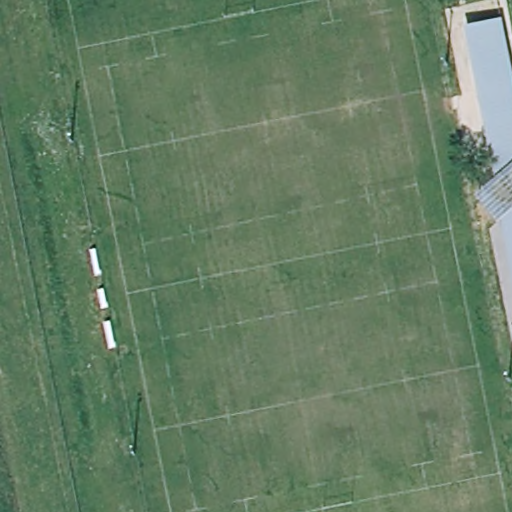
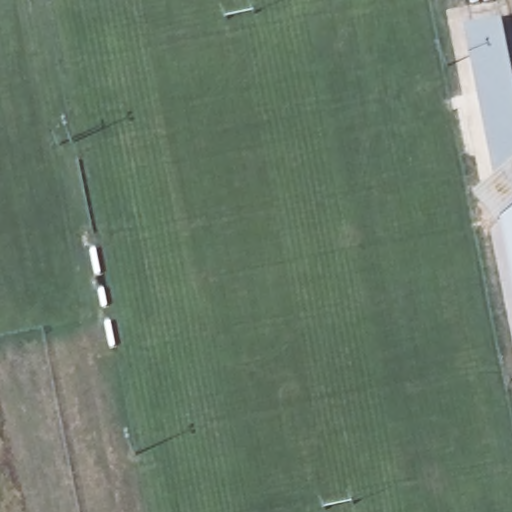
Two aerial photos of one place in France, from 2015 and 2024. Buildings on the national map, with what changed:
unchanged [(503,74),(507,79),(510,78),(512,85),(512,168),(501,178),(495,154),(500,153),(498,141),(492,142),(483,97),(490,93),(479,79),(469,29),(500,23),(508,69),(503,74)]
unchanged [(480,206),(474,199),(477,197),(501,178),(512,168),(512,210),(504,216),(495,224),(480,206)]
unchanged [(512,210),(512,254),(504,216),(512,210)]

